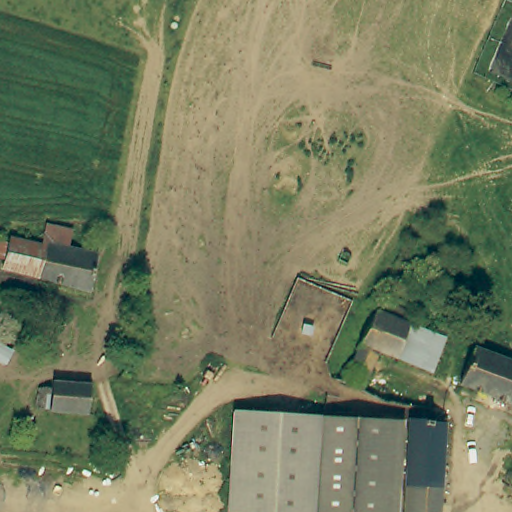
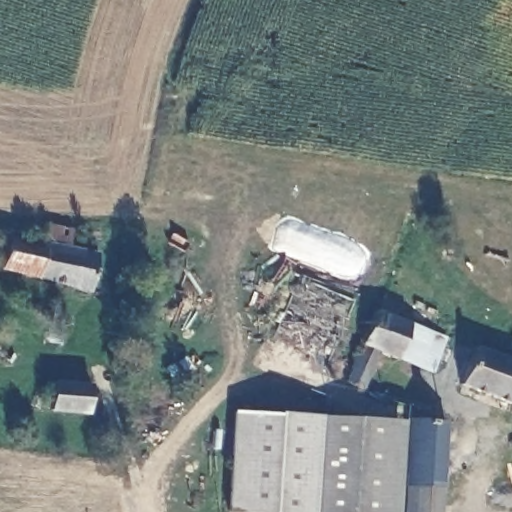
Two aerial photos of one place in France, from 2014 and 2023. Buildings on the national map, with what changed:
unchanged [(8,265),(9,257),(0,255),(0,238),(0,235),(13,238),(14,232),(46,240),(47,235),(49,219),(74,224),(74,241),(104,247),(95,288),(8,265)]
unchanged [(381,352),(364,388),(347,382),(379,310),(413,322),(397,359),(381,352)]
unchanged [(439,331),(424,370),(397,359),(413,322),(439,331)]
unchanged [(512,351),(512,395),(464,376),(479,337),(512,351)]
unchanged [(49,405),(52,379),(89,380),(88,408),(49,405)]
unchanged [(235,405),(389,418),(387,512),(322,512),(232,505),(235,405)]
unchanged [(407,512),(411,417),(450,420),(445,512),(407,512)]
unchanged [(404,420),(399,512),(387,512),(389,418),(404,420)]

